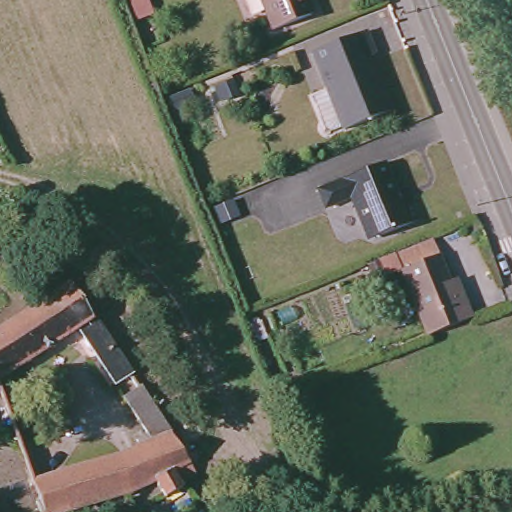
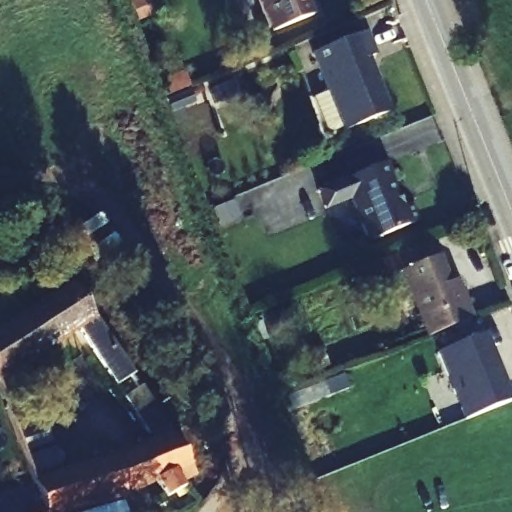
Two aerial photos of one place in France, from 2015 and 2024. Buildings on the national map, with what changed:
unchanged [(275,32),(263,0),(307,0),(315,16),(275,32)]
unchanged [(150,6),(156,23),(142,29),(135,11),(150,6)]
unchanged [(337,145),(331,142),(332,139),(319,106),(334,100),(318,61),(371,40),(380,63),(373,66),(395,122),(350,140),(349,137),(338,141),(337,145)]
unchanged [(357,255),(340,218),(315,230),(306,212),(372,183),(385,212),(383,217),(386,225),(391,227),(391,228),(405,222),(411,238),(365,258),(357,255)]
unchanged [(28,230),(0,237),(0,217),(20,210),(28,230)]
unchanged [(463,289),(474,320),(426,340),(401,270),(396,257),(436,242),(441,256),(455,292),(463,289)]
unchanged [(81,332),(0,385),(0,334),(70,282),(74,287),(136,378),(117,389),(81,332)]
new [(491,339),(512,387),(512,410),(472,426),(445,358),(491,339)]
unchanged [(31,385),(64,471),(148,442),(135,418),(123,401),(139,390),(151,408),(196,474),(180,482),(183,489),(161,500),(154,487),(141,491),(125,495),(60,512),(44,512),(0,396),(31,385)]

